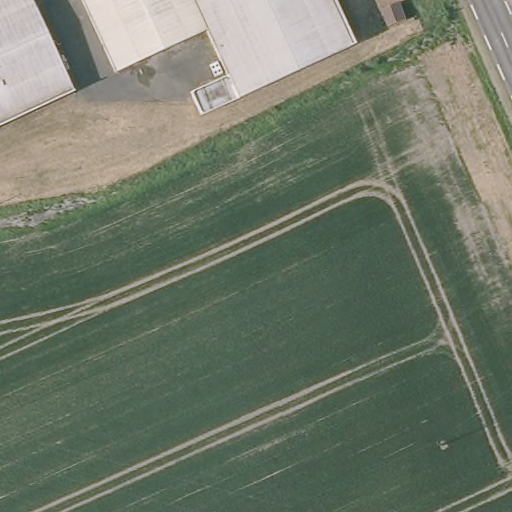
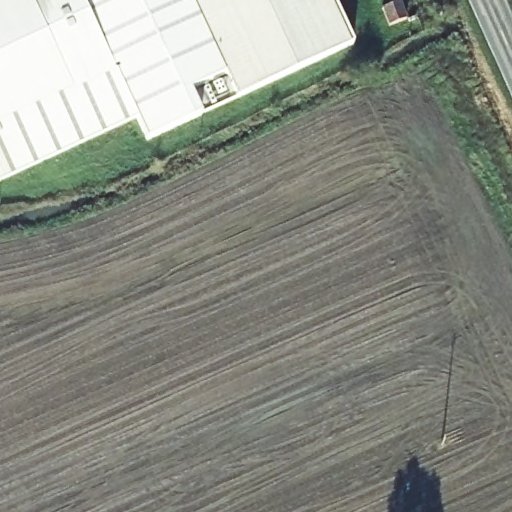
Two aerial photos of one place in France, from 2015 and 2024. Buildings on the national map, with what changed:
unchanged [(0,130),(0,0),(29,0),(75,98),(0,130)]
new [(139,117),(0,180),(0,130),(75,98),(29,0),(77,0),(108,74),(116,70),(139,117)]
unchanged [(108,74),(77,0),(185,0),(200,34),(108,74)]
unchanged [(230,100),(200,34),(185,0),(324,0),(345,51),(230,100)]
new [(116,70),(200,34),(230,100),(146,138),(139,117),(116,70)]

